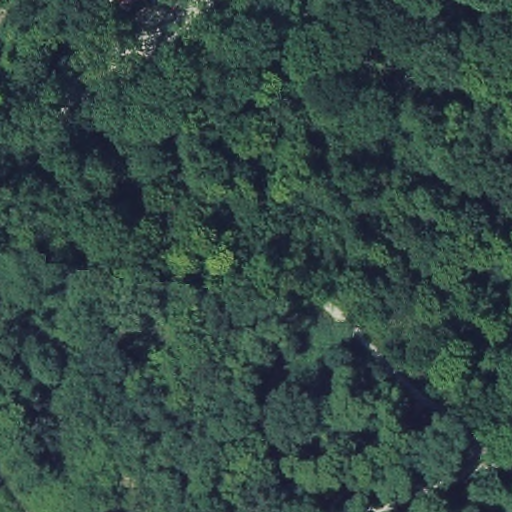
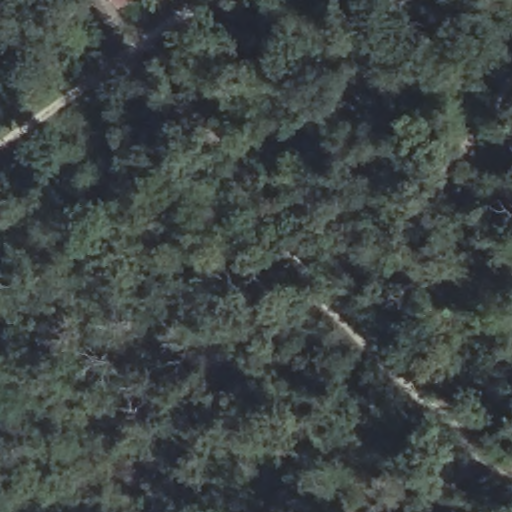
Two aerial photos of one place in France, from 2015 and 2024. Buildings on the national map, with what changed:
unchanged [(118,0),(138,0),(124,9),(118,0)]

